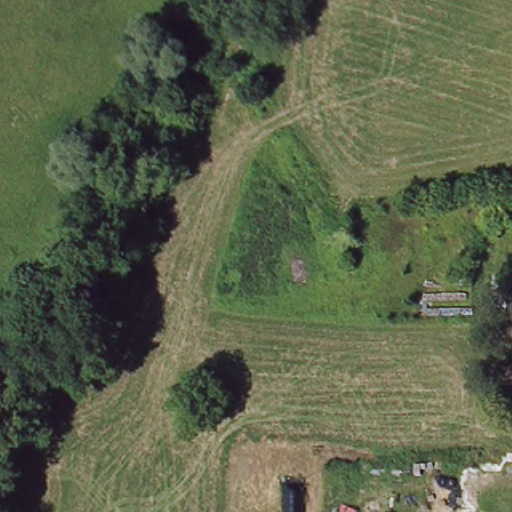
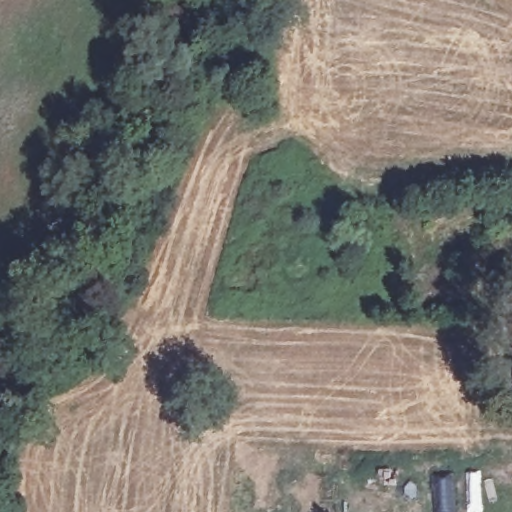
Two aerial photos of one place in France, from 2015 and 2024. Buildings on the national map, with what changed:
[]

